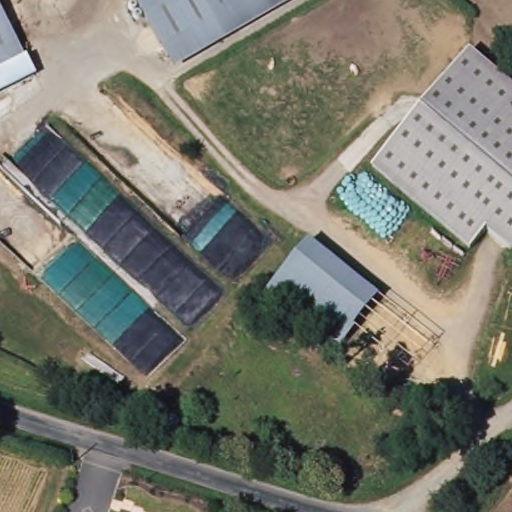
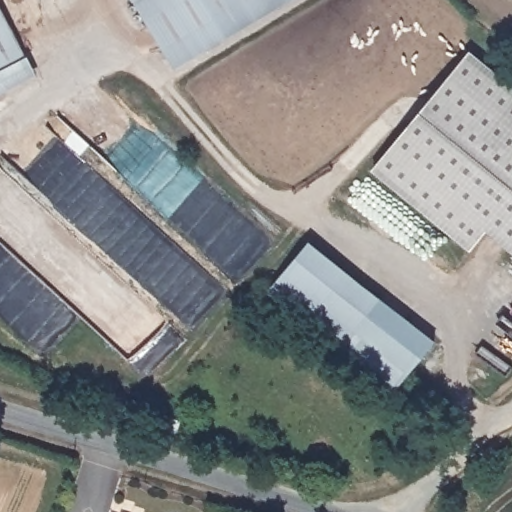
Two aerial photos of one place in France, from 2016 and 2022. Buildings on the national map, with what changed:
unchanged [(219,32),(196,45),(166,61),(132,0),(278,0),(219,32)]
unchanged [(23,55),(0,67),(0,8),(23,55)]
unchanged [(512,252),(487,232),(471,249),(373,170),(470,47),(512,82),(512,252)]
new [(38,73),(0,92),(0,67),(23,55),(38,73)]
unchanged [(304,242),(375,298),(335,350),(263,294),(304,242)]
new [(391,396),(335,350),(375,298),(378,295),(434,340),(391,396)]

